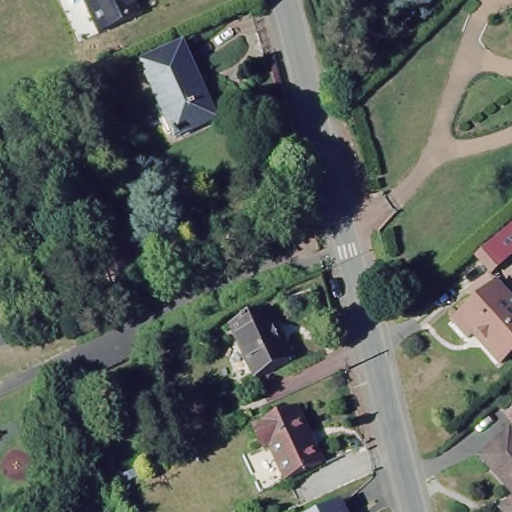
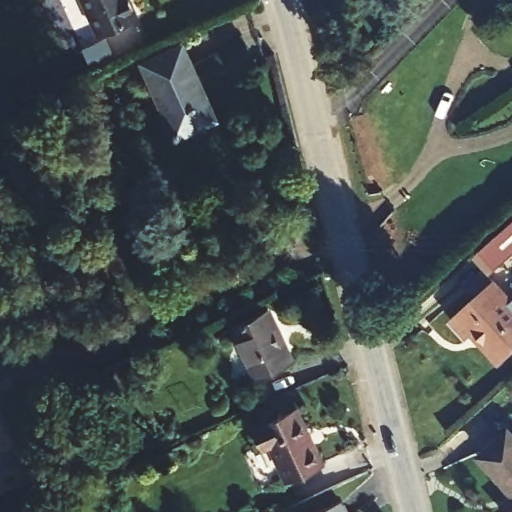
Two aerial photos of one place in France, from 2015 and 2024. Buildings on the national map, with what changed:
unchanged [(138,16),(98,34),(84,0),(130,0),(138,16)]
unchanged [(181,46),(198,86),(203,85),(218,119),(179,137),(146,62),(181,46)]
unchanged [(512,253),(482,280),(479,278),(467,265),(512,225),(512,253)]
unchanged [(512,293),(512,358),(502,367),(476,337),(469,343),(453,325),(494,287),(504,300),(512,293)]
unchanged [(268,306),(289,354),(253,371),(231,323),(268,306)]
unchanged [(298,406),(318,455),(284,468),(271,441),(266,444),(258,424),(298,406)]
unchanged [(512,428),(512,483),(509,486),(480,452),(510,426),(512,428)]
unchanged [(110,437),(122,475),(114,480),(103,439),(110,437)]
unchanged [(512,494),(512,512),(506,512),(500,505),(512,494)]
unchanged [(348,512),(321,512),(344,502),(348,512)]

